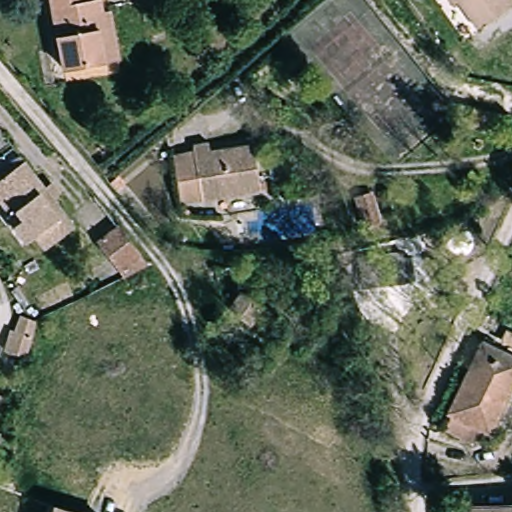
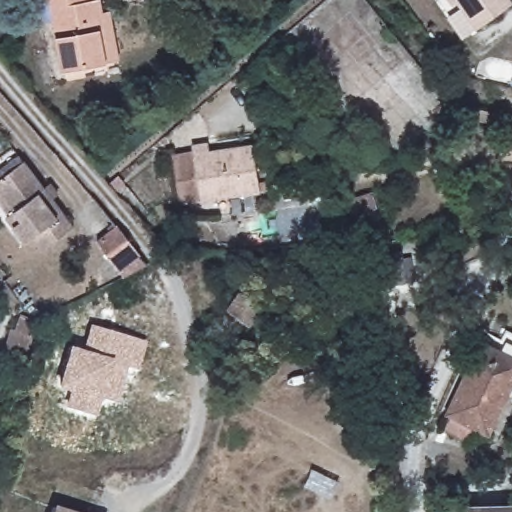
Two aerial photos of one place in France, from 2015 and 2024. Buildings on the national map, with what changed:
unchanged [(121,62),(105,65),(65,70),(54,0),(104,0),(106,10),(113,8),(121,62)]
unchanged [(465,2),(462,0),(512,0),(512,9),(486,30),(476,39),(453,10),(465,2)]
unchanged [(196,207),(185,155),(201,151),(203,160),(228,155),(227,150),(243,147),(253,196),(196,207)]
unchanged [(76,229),(49,249),(38,235),(32,226),(24,232),(12,215),(19,210),(1,184),(30,165),(62,209),(76,229)]
unchanged [(124,225),(147,270),(125,280),(104,236),(124,225)]
new [(384,287),(362,282),(364,268),(359,267),(362,250),(411,257),(413,281),(406,282),(384,287)]
unchanged [(256,330),(247,322),(225,306),(240,288),(262,305),(269,311),(256,330)]
unchanged [(28,361),(6,354),(18,314),(39,322),(28,361)]
new [(99,400),(96,416),(65,406),(69,390),(56,386),(70,345),(83,350),(91,324),(148,341),(139,370),(127,366),(117,401),(101,395),(99,400)]
unchanged [(488,357),(494,346),(512,354),(512,415),(495,408),(474,453),(462,447),(455,463),(429,450),(474,351),(488,357)]
unchanged [(471,512),(472,504),(512,504),(512,512),(471,512)]
unchanged [(73,512),(48,512),(50,505),(73,512)]

